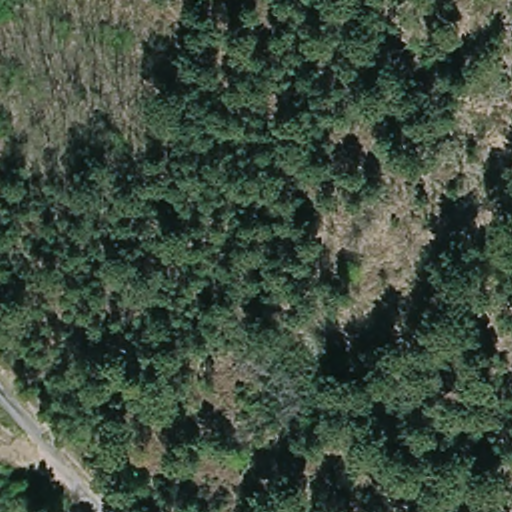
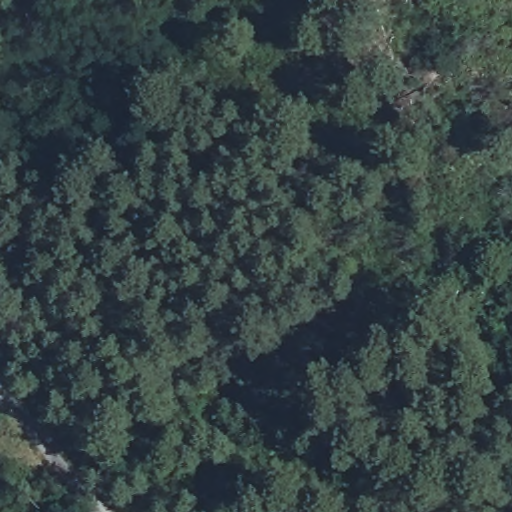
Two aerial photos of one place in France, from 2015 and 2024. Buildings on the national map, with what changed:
[]

